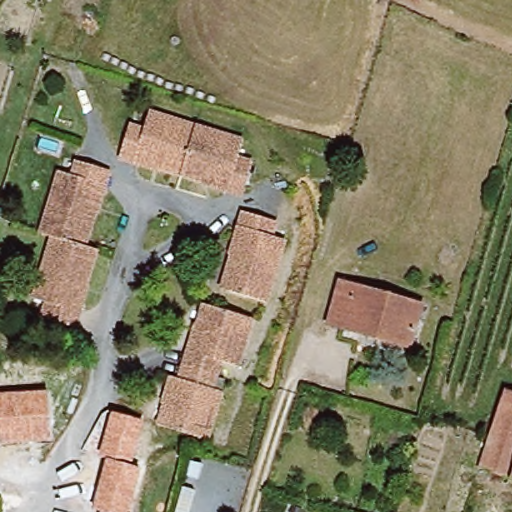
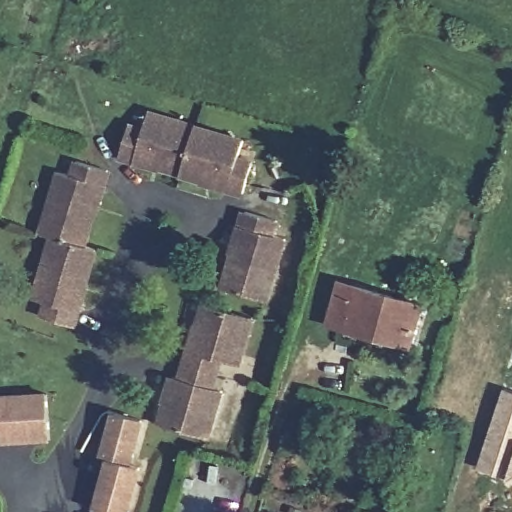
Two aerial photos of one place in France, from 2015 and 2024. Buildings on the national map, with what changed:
unchanged [(119,155),(128,124),(142,128),(147,111),(199,128),(185,175),(119,155)]
unchanged [(235,159),(249,163),(240,193),(185,175),(199,128),(240,141),(235,159)]
unchanged [(61,169),(74,173),(79,158),(111,169),(85,247),(96,250),(71,328),(29,314),(34,298),(20,294),(61,169)]
unchanged [(280,237),(261,299),(219,285),(242,210),(271,219),(266,233),(280,237)]
unchanged [(410,348),(329,322),(342,280),(423,307),(410,348)]
unchanged [(180,363),(200,300),(247,317),(232,364),(215,359),(210,373),(180,363)]
unchanged [(175,376),(180,363),(210,373),(206,386),(215,389),(200,436),(152,421),(167,373),(175,376)]
unchanged [(475,466),(486,433),(501,388),(512,391),(512,476),(502,474),(475,466)]
unchanged [(47,391),(50,438),(1,443),(0,428),(0,394),(47,391)]
unchanged [(100,459),(111,413),(144,422),(131,467),(105,460),(100,459)]
unchanged [(131,467),(137,469),(126,512),(113,512),(95,507),(93,506),(105,460),(131,467)]
unchanged [(95,507),(113,512),(94,512),(95,507)]

